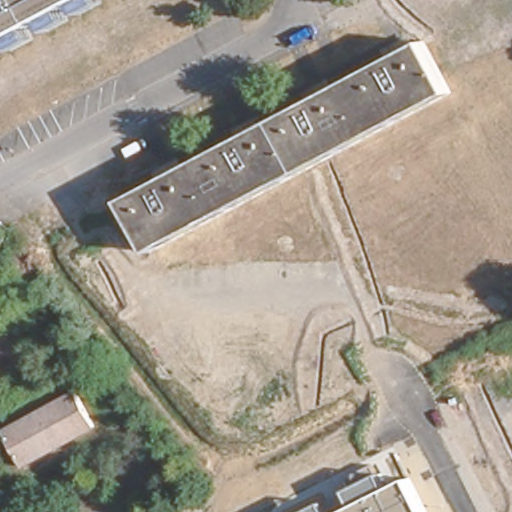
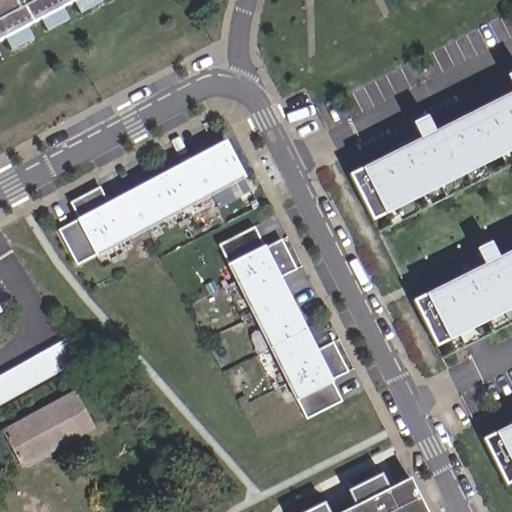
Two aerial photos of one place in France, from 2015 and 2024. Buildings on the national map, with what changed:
unchanged [(0,38),(0,0),(72,0),(0,38)]
demolished [(424,43),(450,92),(151,250),(125,201),(424,43)]
new [(506,76),(512,72),(512,88),(506,76)]
new [(362,170),(419,140),(412,122),(426,116),(434,132),(512,92),(512,155),(510,151),(483,164),(487,176),(471,184),(466,172),(455,178),(460,191),(443,198),(440,187),(411,200),(416,211),(401,217),(396,207),(383,214),(371,219),(349,175),(362,170)]
new [(75,220),(79,217),(70,203),(99,187),(108,202),(225,140),(243,176),(94,254),(76,265),(58,231),(75,220)]
new [(218,246),(253,229),(263,245),(265,248),(281,240),(295,268),(280,277),(316,351),(332,342),(346,370),(332,378),(333,382),(341,401),(306,418),(297,399),(229,264),(218,246)]
new [(425,295),(482,266),(474,249),(489,242),(497,258),(512,251),(512,321),(510,322),(505,311),(473,326),(478,337),(462,345),(458,335),(447,341),(435,347),(412,301),(425,295)]
new [(78,362),(0,407),(0,375),(63,340),(78,362)]
unchanged [(23,468),(5,433),(76,395),(95,429),(23,468)]
new [(495,433),(512,424),(512,480),(504,483),(483,440),(495,433)]
unchanged [(346,490),(352,487),(346,477),(371,466),(376,476),(382,474),(389,487),(410,477),(427,512),(339,512),(354,505),(346,490)]
unchanged [(328,512),(302,512),(323,502),(328,512)]

